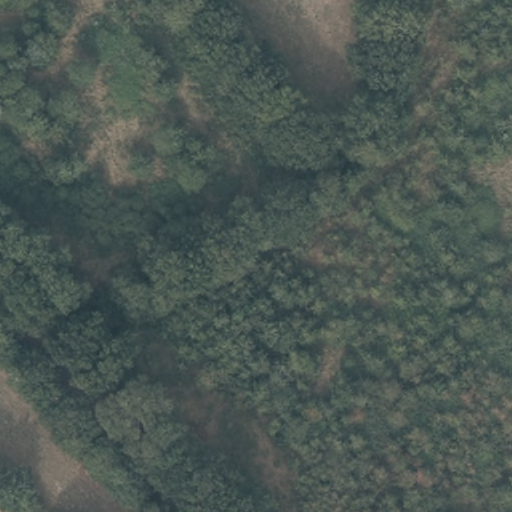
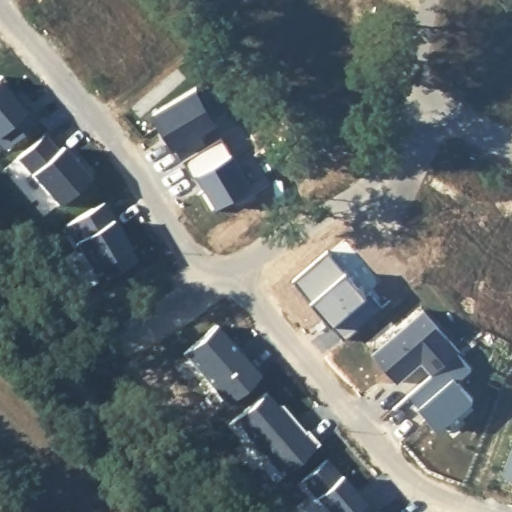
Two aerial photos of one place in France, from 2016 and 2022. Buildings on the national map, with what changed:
new [(15,93),(28,108),(39,120),(5,149),(0,144),(0,77),(1,76),(15,93)]
new [(196,88),(217,122),(199,134),(207,146),(183,161),(176,147),(174,148),(153,113),(196,88)]
new [(44,135),(58,151),(63,147),(90,179),(63,202),(22,155),(44,135)]
new [(207,146),(222,138),(251,187),(210,211),(199,193),(207,188),(199,174),(194,177),(183,161),(207,146)]
new [(104,203),(114,221),(112,222),(136,261),(100,283),(66,226),(104,203)]
new [(327,251),(366,295),(370,291),(383,307),(345,340),(332,325),(335,323),(314,299),(312,302),(293,280),(327,251)]
new [(424,310),(459,351),(458,353),(433,374),(422,362),(398,383),(373,354),(424,310)]
new [(239,351),(247,361),(260,376),(227,404),(184,354),(217,326),(239,351)]
new [(433,374),(458,353),(471,368),(457,380),(473,399),(438,429),(408,395),(433,374)]
new [(267,393),(279,408),(282,405),(296,422),(294,424),(302,434),(307,431),(319,444),(275,482),(261,466),(268,459),(250,437),(246,441),(231,424),(267,393)]
new [(512,454),(512,481),(503,478),(512,454)]
new [(371,512),(327,512),(302,482),(327,460),(371,512)]

